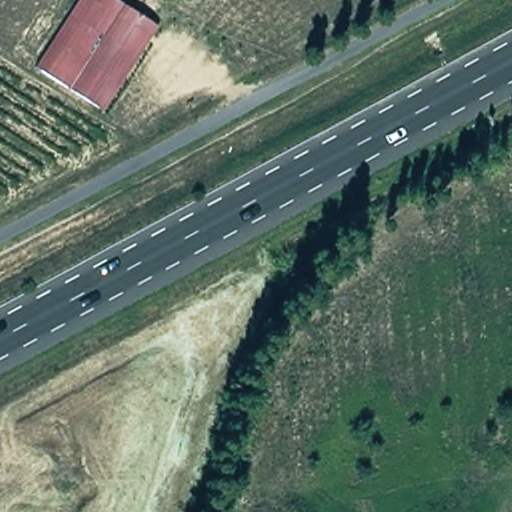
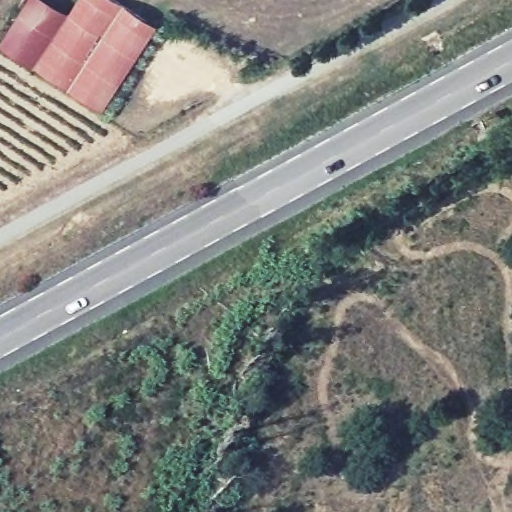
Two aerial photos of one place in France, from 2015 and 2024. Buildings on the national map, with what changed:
new [(32,66),(0,47),(0,43),(28,0),(45,0),(66,13),(32,66)]
unchanged [(102,112),(32,66),(74,0),(113,0),(156,28),(102,112)]

